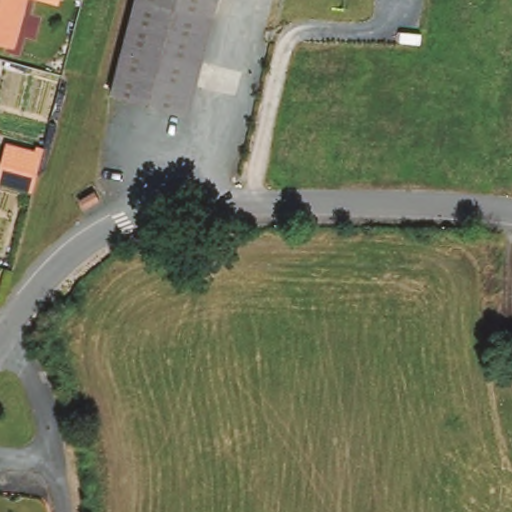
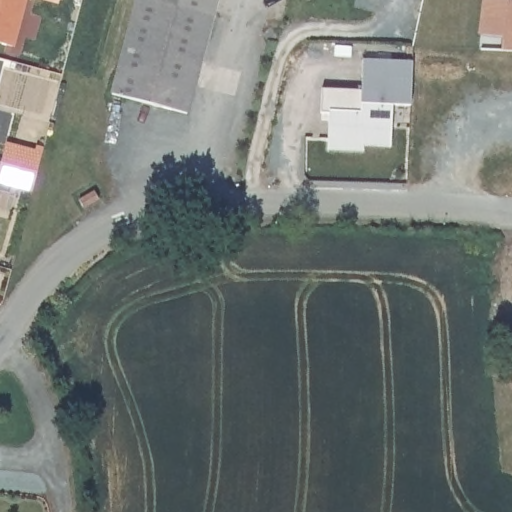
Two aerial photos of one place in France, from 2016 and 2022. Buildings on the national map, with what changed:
unchanged [(7,43),(0,41),(0,0),(25,0),(13,45),(7,43)]
unchanged [(138,0),(216,0),(185,116),(112,96),(138,0)]
new [(512,51),(501,52),(503,36),(484,35),(487,0),(512,0),(512,51)]
new [(361,91),(363,61),(413,62),(412,104),(392,104),(391,145),(365,145),(365,152),(329,152),(329,114),(321,113),(322,90),(361,91)]
unchanged [(0,185),(0,159),(5,145),(41,155),(36,174),(31,192),(0,185)]
unchanged [(107,171),(110,181),(95,187),(91,177),(107,171)]

